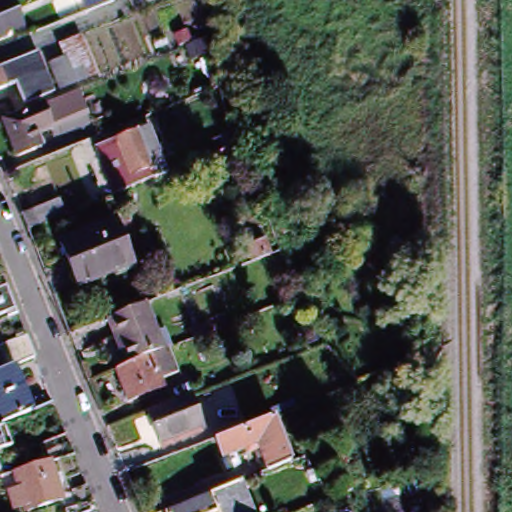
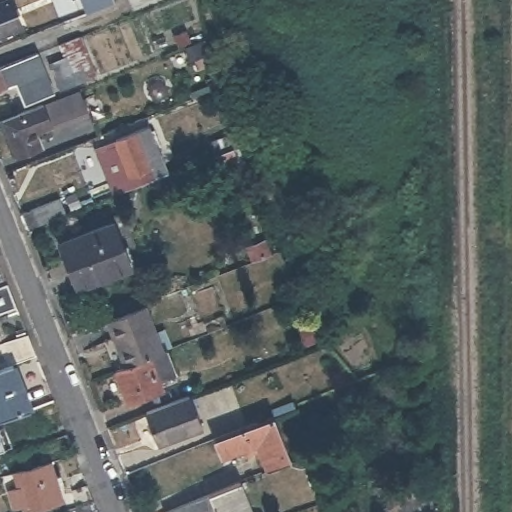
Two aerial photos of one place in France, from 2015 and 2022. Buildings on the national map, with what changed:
unchanged [(84,11),(80,0),(111,0),(112,1),(84,11)]
unchanged [(7,2),(18,29),(5,34),(0,36),(0,4),(7,2)]
unchanged [(177,46),(172,34),(182,30),(187,42),(177,46)]
unchanged [(202,37),(208,52),(189,60),(183,45),(202,37)]
unchanged [(64,92),(55,68),(70,62),(64,46),(83,38),(99,79),(64,92)]
unchanged [(27,105),(18,87),(0,94),(0,69),(40,55),(55,94),(27,105)]
unchanged [(39,134),(44,147),(20,156),(6,121),(44,107),(54,128),(39,134)]
unchanged [(116,190),(100,148),(98,143),(118,136),(151,122),(170,168),(169,169),(163,171),(143,179),(116,190)]
unchanged [(221,180),(210,152),(216,149),(210,137),(217,134),(218,135),(230,130),(233,142),(231,143),(243,171),(221,180)]
unchanged [(30,231),(24,215),(61,200),(68,216),(30,231)]
unchanged [(59,245),(111,224),(125,259),(129,267),(77,288),(73,280),(59,245)]
unchanged [(11,287),(20,310),(0,318),(0,292),(11,287)]
unchanged [(114,371),(125,367),(107,319),(145,304),(156,335),(162,333),(168,350),(166,351),(175,375),(159,382),(162,391),(128,403),(114,371)]
unchanged [(301,341),(297,330),(294,323),(305,319),(307,326),(311,337),(301,341)]
unchanged [(2,366),(0,361),(0,341),(30,330),(38,352),(15,361),(34,407),(0,420),(0,366),(2,366)]
unchanged [(161,448),(149,418),(175,408),(193,401),(205,432),(161,448)]
unchanged [(272,466),(263,445),(250,450),(247,445),(227,453),(220,435),(276,413),(294,458),(272,466)]
unchanged [(0,447),(0,426),(6,424),(13,443),(0,447)]
unchanged [(18,482),(14,468),(33,463),(47,459),(41,440),(69,432),(76,451),(50,458),(55,472),(61,471),(64,479),(57,481),(61,495),(26,506),(24,502),(15,504),(9,486),(18,482)]
unchanged [(2,473),(0,474),(0,467),(2,473)]
unchanged [(58,508),(76,503),(72,487),(86,483),(92,499),(97,512),(59,512),(58,508)]
unchanged [(197,500),(210,495),(231,486),(241,512),(166,512),(197,500)]

